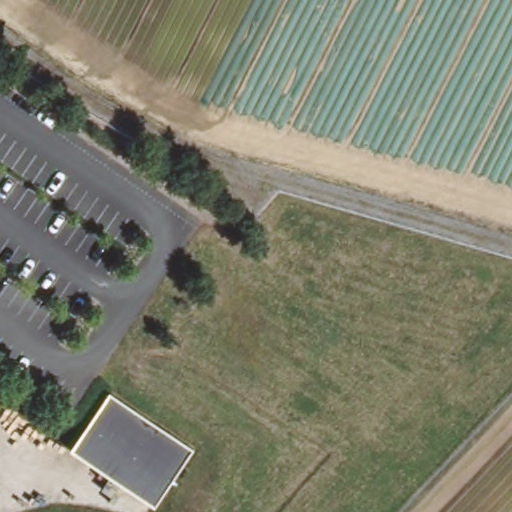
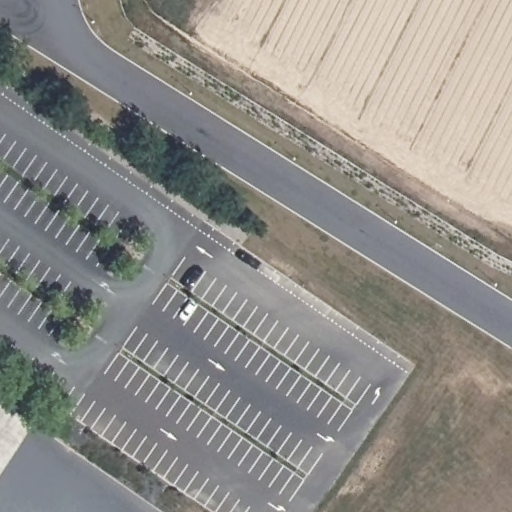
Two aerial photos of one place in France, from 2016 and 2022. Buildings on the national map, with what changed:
demolished [(65,453),(105,393),(190,452),(150,511),(65,453)]

